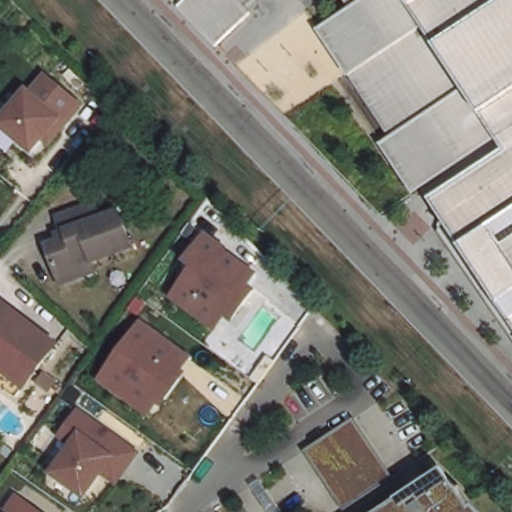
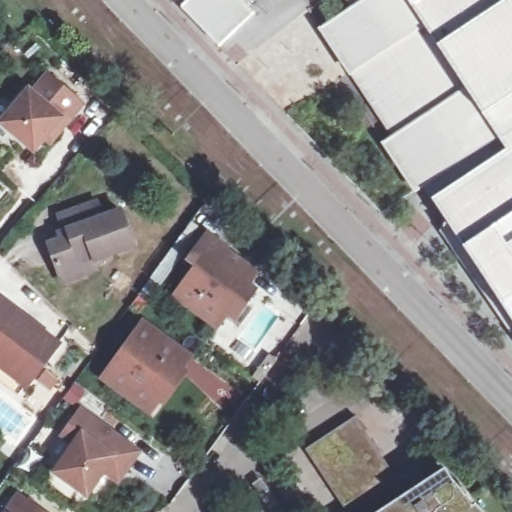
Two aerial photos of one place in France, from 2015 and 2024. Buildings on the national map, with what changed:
unchanged [(223,50),(195,21),(175,0),(259,0),(248,8),(257,17),(223,50)]
unchanged [(352,12),(344,0),(512,0),(512,339),(490,308),(440,236),(445,223),(423,191),(415,196),(383,147),(392,142),(320,34),(352,12)]
unchanged [(53,145),(45,141),(35,154),(0,125),(0,122),(28,87),(31,90),(46,74),(85,107),(53,145)]
unchanged [(100,265),(66,276),(53,239),(71,232),(65,211),(101,198),(107,213),(125,207),(137,241),(108,250),(111,261),(100,265)]
unchanged [(193,268),(186,262),(208,232),(231,249),(228,251),(259,274),(251,284),(259,290),(236,322),(228,318),(218,331),(173,297),(193,268)]
unchanged [(67,340),(40,377),(0,346),(0,312),(11,297),(67,340)]
unchanged [(193,357),(185,368),(190,372),(165,406),(161,403),(150,418),(100,380),(142,320),(193,357)]
unchanged [(28,391),(0,369),(0,346),(40,377),(28,391)]
unchanged [(120,486),(105,475),(88,499),(51,474),(71,446),(58,437),(80,407),(143,453),(120,486)]
unchanged [(355,421),(393,477),(345,510),(307,450),(355,421)]
unchanged [(458,490),(465,487),(478,509),(481,512),(381,512),(445,470),(458,490)]
unchanged [(42,512),(4,512),(16,493),(42,512)]

